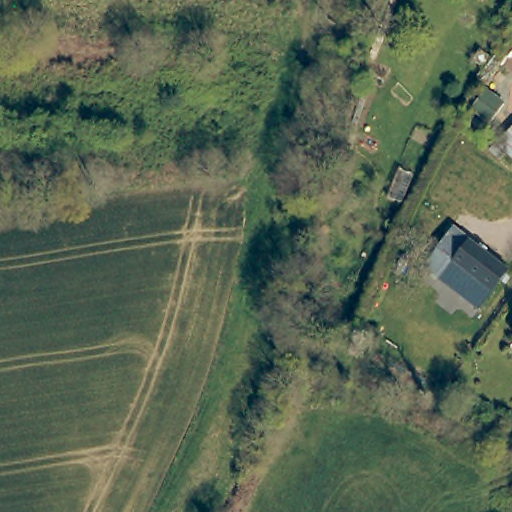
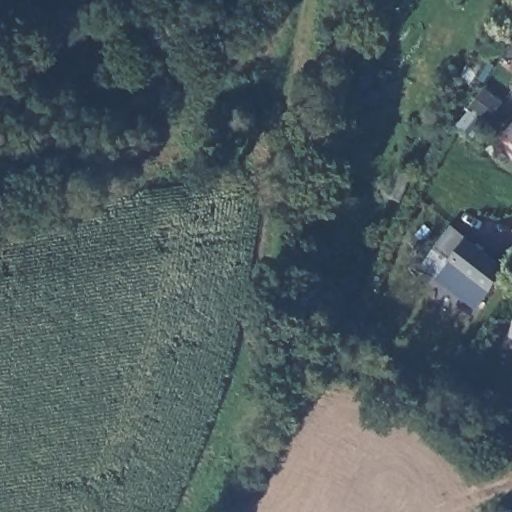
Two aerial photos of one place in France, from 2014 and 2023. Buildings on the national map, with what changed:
unchanged [(512,130),(512,155),(500,144),(512,130)]
unchanged [(441,284),(423,268),(452,223),(472,241),(469,245),(441,284)]
unchanged [(482,314),(441,284),(469,245),(510,275),(482,314)]

